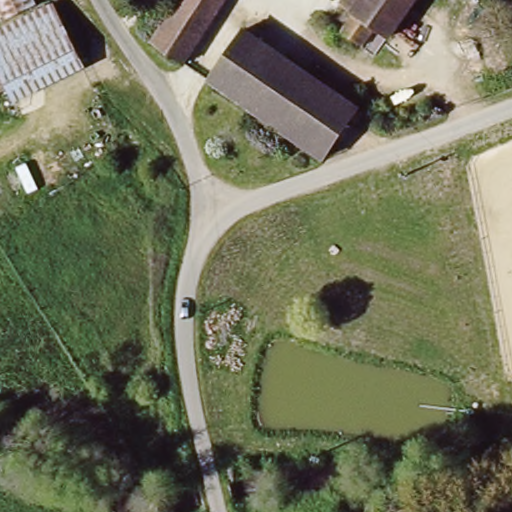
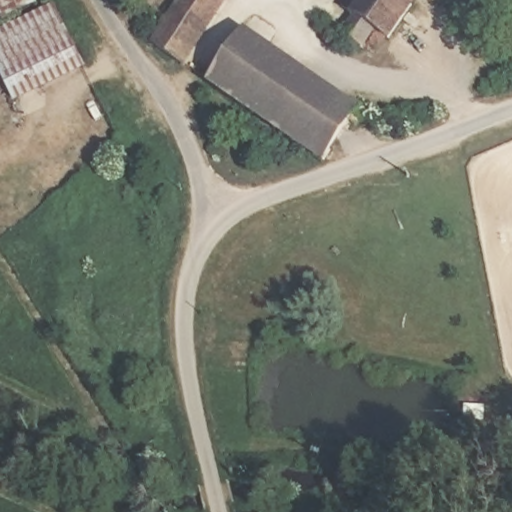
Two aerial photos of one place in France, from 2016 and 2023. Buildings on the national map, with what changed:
unchanged [(30,7),(0,23),(0,0),(26,0),(30,7)]
unchanged [(187,70),(152,47),(180,0),(227,0),(187,70)]
unchanged [(402,41),(390,33),(380,49),(362,38),(372,20),(356,11),(363,0),(426,0),(402,41)]
unchanged [(35,14),(70,70),(17,102),(0,74),(0,36),(35,14)]
unchanged [(366,102),(358,115),(350,110),(323,152),(207,82),(240,26),(366,102)]

